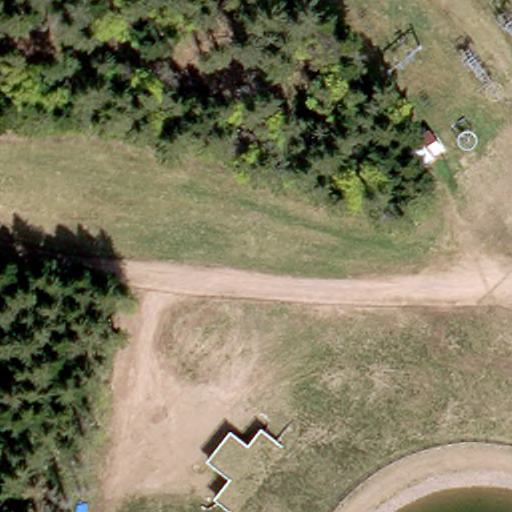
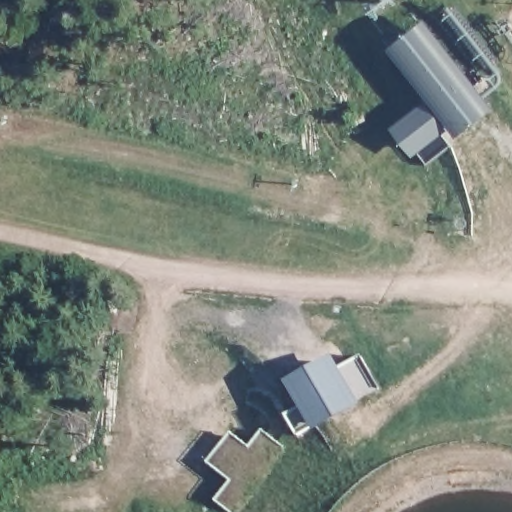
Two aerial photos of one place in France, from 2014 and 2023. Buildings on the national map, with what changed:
new [(387,48),(425,18),(495,107),(456,137),(387,48)]
new [(425,101),(447,129),(413,156),(390,128),(425,101)]
new [(301,410),(285,382),(332,354),(340,368),(360,355),(378,388),(359,402),(361,404),(315,432),(312,429),(298,437),(287,415),(301,410)]
unchanged [(247,447),(262,430),(285,450),(237,512),(229,512),(214,501),(229,480),(207,463),(230,433),(247,447)]

